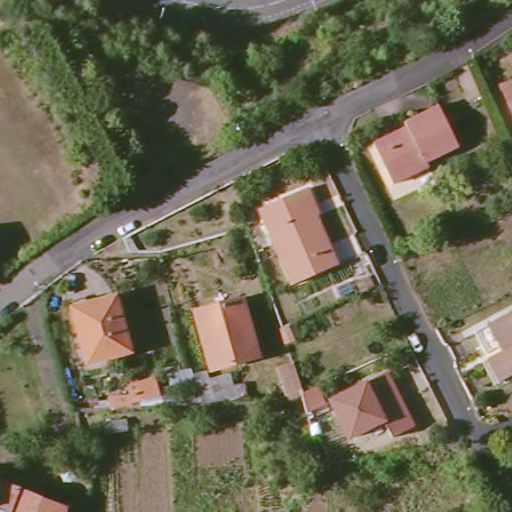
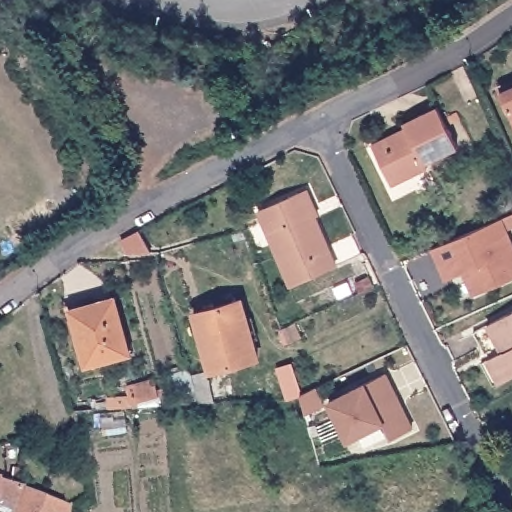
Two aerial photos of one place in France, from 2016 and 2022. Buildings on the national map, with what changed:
unchanged [(512,91),(512,110),(505,94),(512,91)]
unchanged [(436,120),(450,113),(453,121),(441,127),(450,148),(421,163),(425,170),(390,188),(369,148),(390,137),(392,140),(403,133),(400,126),(431,110),(436,120)]
unchanged [(307,219),(311,218),(331,263),(286,283),(253,209),(294,191),(307,219)]
new [(512,242),(512,279),(473,296),(462,271),(443,279),(430,248),(512,214),(512,228),(507,230),(512,242)]
unchanged [(111,297),(128,352),(85,365),(76,335),(82,333),(74,308),(111,297)]
unchanged [(193,312),(240,302),(255,362),(208,373),(193,312)]
unchanged [(512,373),(501,378),(476,326),(512,307),(512,373)]
unchanged [(281,397),(274,365),(295,354),(302,387),(305,395),(287,396),(281,397)]
unchanged [(391,441),(384,424),(348,440),(332,401),(389,375),(397,394),(400,401),(413,431),(391,441)]
unchanged [(160,401),(137,405),(137,409),(115,409),(115,397),(136,397),(134,388),(155,383),(160,401)]
unchanged [(207,383),(215,403),(200,404),(195,386),(207,383)]
unchanged [(18,491),(65,510),(65,512),(0,512),(0,484),(18,491)]

